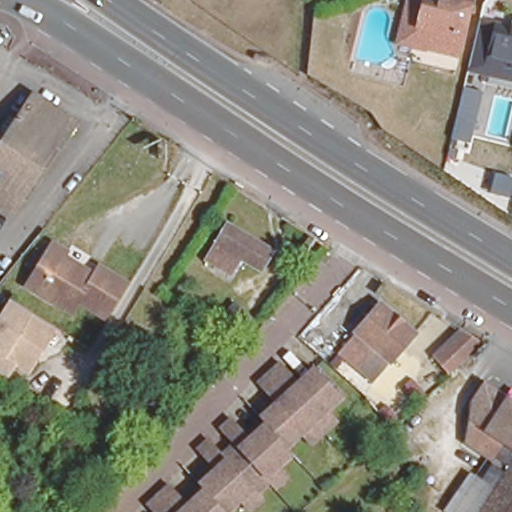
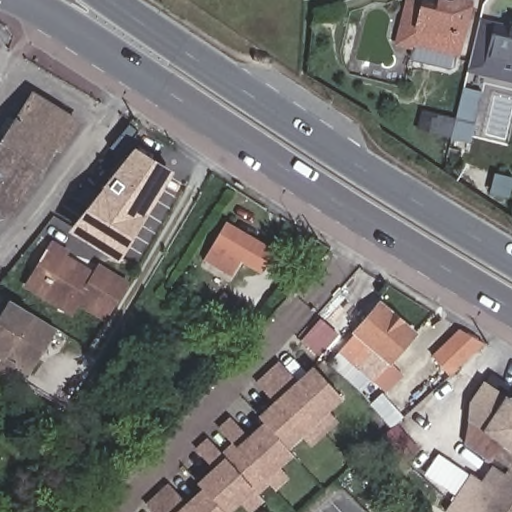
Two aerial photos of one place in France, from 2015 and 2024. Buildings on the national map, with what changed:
unchanged [(408,0),(478,0),(465,54),(397,42),(408,0)]
unchanged [(511,27),(511,34),(512,34),(512,76),(489,74),(495,26),(511,27)]
unchanged [(81,113),(64,148),(61,145),(28,219),(0,204),(0,142),(5,132),(26,86),(81,113)]
new [(417,130),(422,111),(456,119),(463,88),(483,92),(470,143),(417,130)]
new [(133,147),(174,173),(119,261),(69,231),(133,147)]
unchanged [(224,214),(267,238),(253,260),(240,253),(234,249),(224,269),(200,257),(211,236),(224,214)]
unchanged [(31,267),(51,234),(69,244),(64,252),(83,263),(80,268),(89,274),(98,258),(131,277),(105,320),(75,302),(70,310),(40,293),(22,282),(31,267)]
unchanged [(207,314),(221,291),(252,314),(235,337),(207,314)]
unchanged [(16,367),(9,379),(0,373),(0,318),(11,300),(36,316),(61,329),(31,376),(16,367)]
unchanged [(359,368),(357,355),(345,344),(384,301),(416,330),(371,377),(359,368)]
unchanged [(431,349),(454,325),(479,340),(449,368),(431,349)]
unchanged [(341,425),(316,451),(302,438),(291,450),(295,456),(281,470),(290,480),(279,494),(269,487),(259,496),(266,504),(258,512),(249,512),(242,504),(234,512),(152,512),(145,505),(168,484),(184,501),(199,488),(196,482),(211,466),(199,450),(210,439),(223,454),(233,444),(220,429),(232,416),(249,435),(263,424),(255,416),(271,398),(257,383),(281,361),(298,378),(312,367),(343,403),(331,412),(341,425)]
unchanged [(480,476),(490,464),(464,449),(466,416),(474,404),(466,399),(481,374),(512,394),(512,512),(442,512),(465,469),(480,476)]
unchanged [(366,452),(371,447),(360,435),(362,433),(378,417),(390,429),(397,423),(424,453),(392,479),(366,452)]

